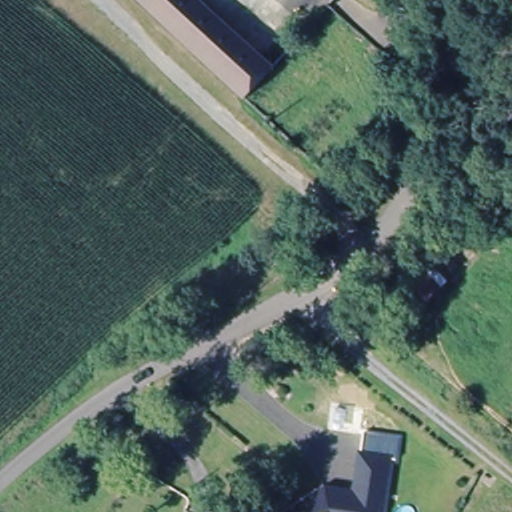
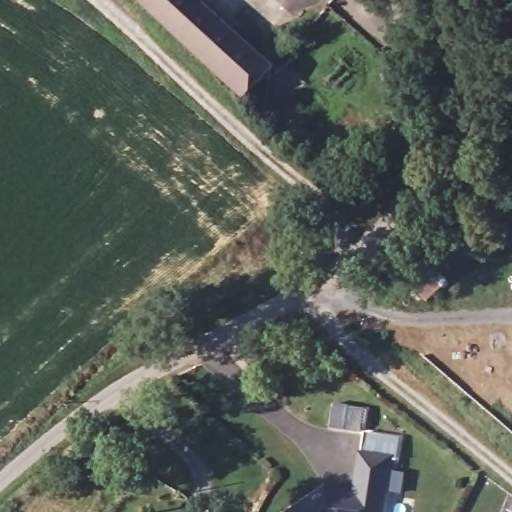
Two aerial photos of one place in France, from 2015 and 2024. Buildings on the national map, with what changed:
unchanged [(228,23),(274,68),(245,100),(138,0),(202,0),(228,23)]
unchanged [(247,7),(292,50),(274,68),(228,23),(247,7)]
unchanged [(390,461),(385,512),(295,512),(328,486),(355,492),(360,438),(397,438),(397,461),(390,461)]

